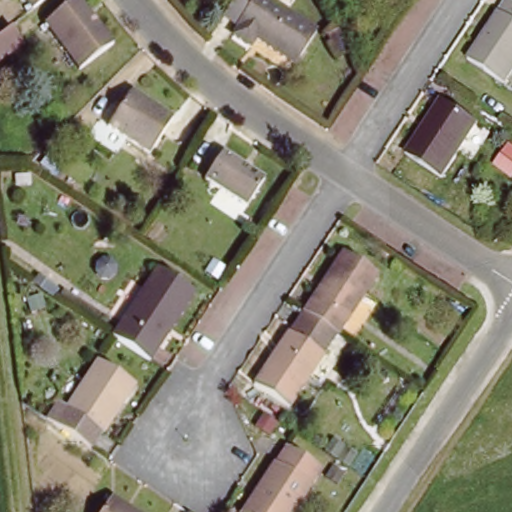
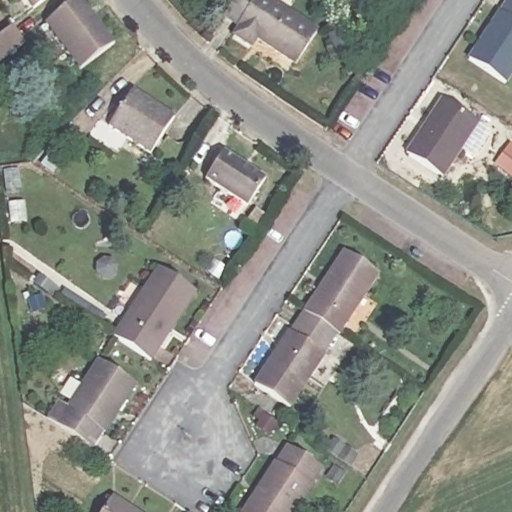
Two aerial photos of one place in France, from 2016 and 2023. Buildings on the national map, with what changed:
unchanged [(34,10),(28,0),(47,0),(34,10)]
unchanged [(117,45),(82,71),(45,23),(74,0),(83,0),(117,45)]
unchanged [(325,28),(303,61),(263,35),(258,42),(235,27),(240,20),(227,12),(235,0),(282,0),(325,28)]
unchanged [(471,60),(509,0),(510,0),(512,1),(512,69),(504,81),(471,60)]
unchanged [(0,49),(0,22),(11,14),(24,30),(0,49)]
unchanged [(171,121),(146,157),(105,130),(129,93),(171,121)]
unchanged [(482,118),(446,174),(411,151),(447,95),(482,118)]
unchanged [(257,180),(238,207),(197,180),(217,151),(257,180)]
unchanged [(339,333),(303,310),(343,250),(379,273),(339,333)]
unchanged [(149,355),(114,331),(160,263),(195,286),(149,355)]
unchanged [(54,274),(48,283),(34,275),(41,265),(54,274)]
unchanged [(339,333),(288,408),(252,385),(303,310),(339,333)]
unchanged [(128,388),(97,436),(61,412),(93,365),(128,388)]
unchanged [(291,512),(242,512),(276,460),(283,453),(290,442),(323,461),(291,512)]
unchanged [(104,512),(116,495),(139,512),(104,512)]

